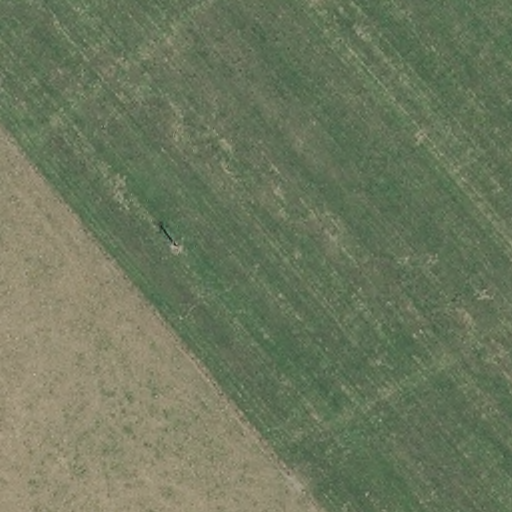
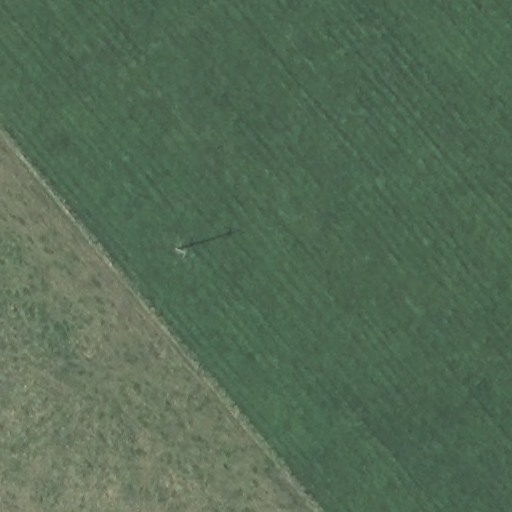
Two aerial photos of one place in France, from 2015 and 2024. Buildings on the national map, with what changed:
[]

